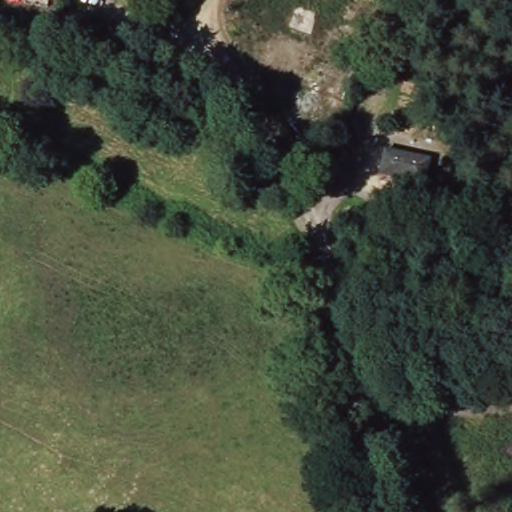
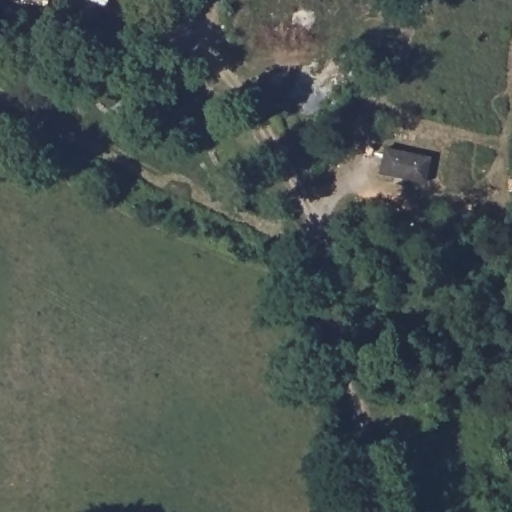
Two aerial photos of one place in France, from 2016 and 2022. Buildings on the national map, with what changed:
unchanged [(427,151),(419,189),(378,183),(384,146),(427,151)]

